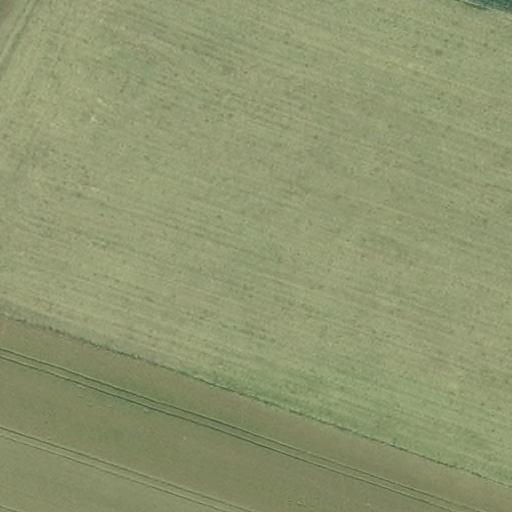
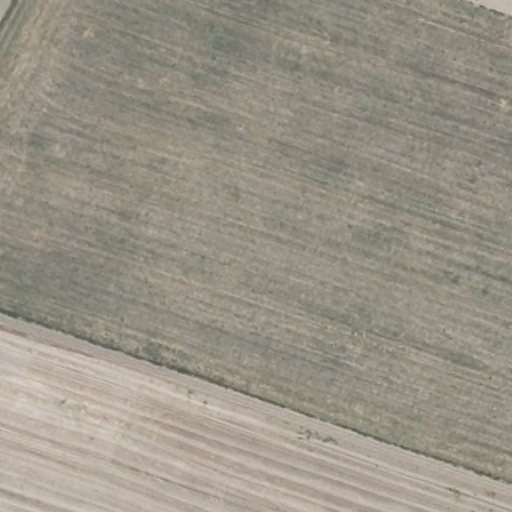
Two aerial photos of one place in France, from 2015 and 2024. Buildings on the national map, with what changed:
[]

